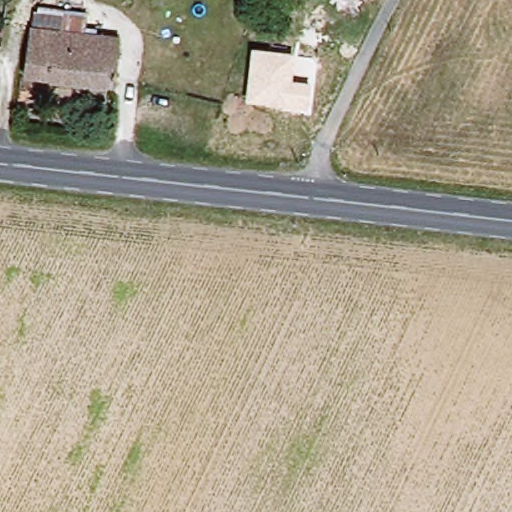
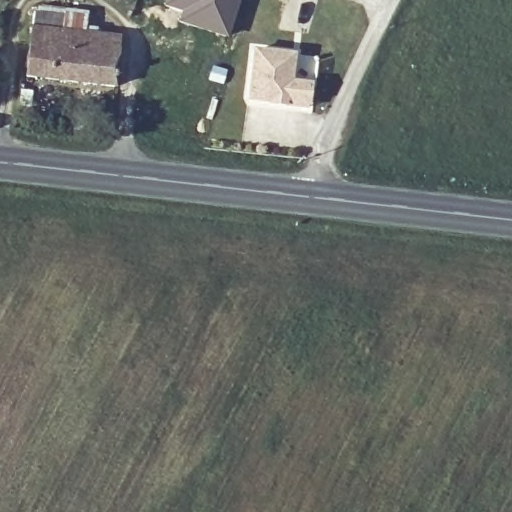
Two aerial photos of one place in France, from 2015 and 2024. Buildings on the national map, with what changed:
new [(240,0),(227,37),(176,21),(179,12),(162,5),(163,0),(240,0)]
unchanged [(57,14),(58,31),(116,35),(116,84),(24,76),(28,14),(30,11),(57,14)]
unchanged [(296,65),(301,65),(299,82),(272,82),(275,87),(262,87),(261,50),(295,47),(296,65)]

